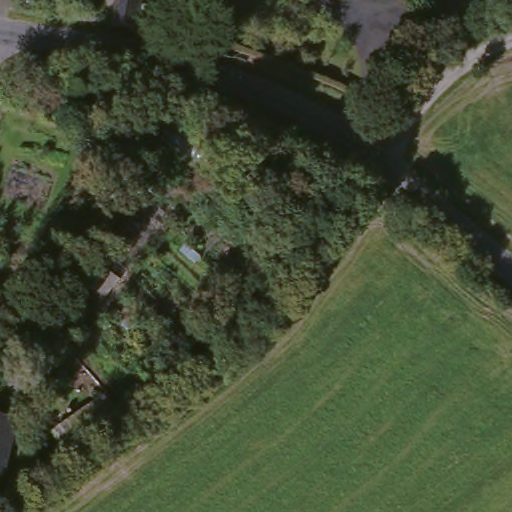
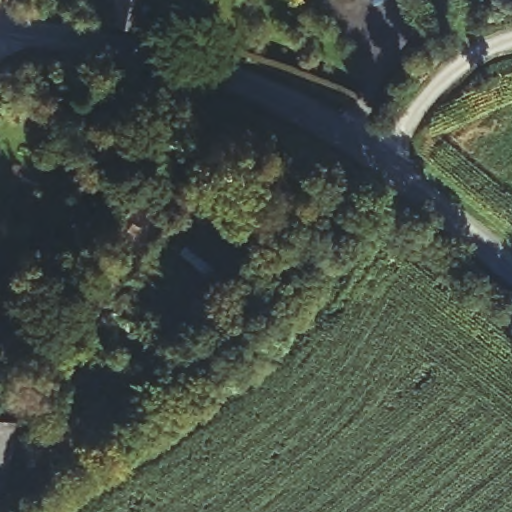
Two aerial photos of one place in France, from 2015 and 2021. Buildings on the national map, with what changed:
unchanged [(138,0),(133,34),(104,28),(110,0),(138,0)]
unchanged [(220,159),(211,177),(188,164),(198,147),(220,159)]
unchanged [(98,262),(121,281),(103,300),(81,282),(98,262)]
unchanged [(72,464),(48,431),(96,396),(118,427),(72,464)]
unchanged [(11,423),(0,472),(0,422),(11,423)]

